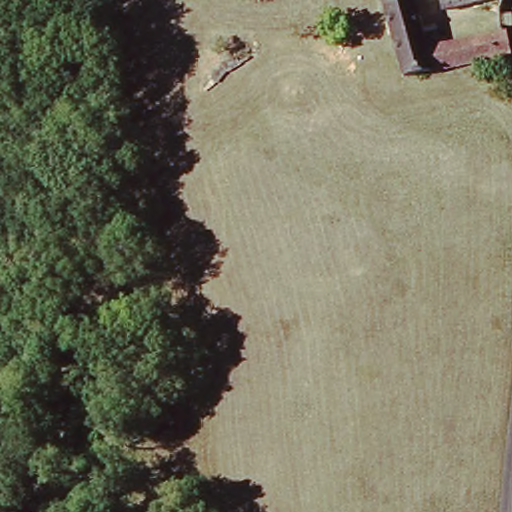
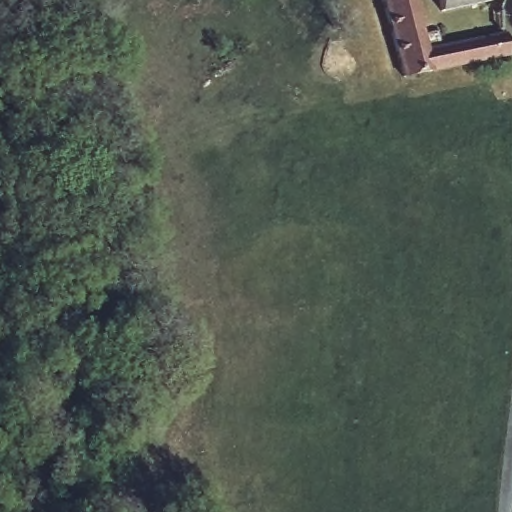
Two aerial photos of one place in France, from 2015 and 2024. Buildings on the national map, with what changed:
unchanged [(482,44),(481,35),(502,32),(507,37),(510,62),(402,80),(380,0),(410,0),(424,56),(482,44)]
unchanged [(437,14),(434,0),(500,0),(500,5),(437,14)]

